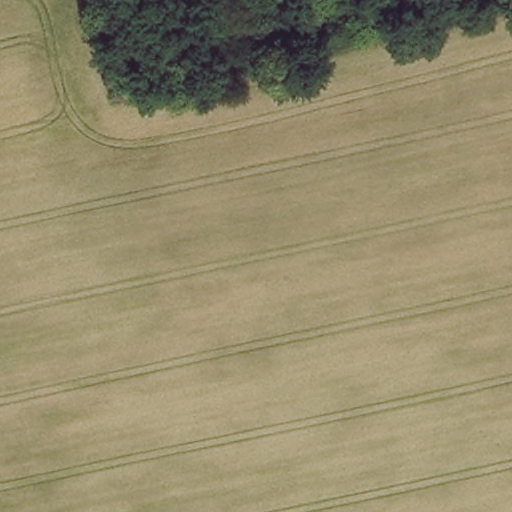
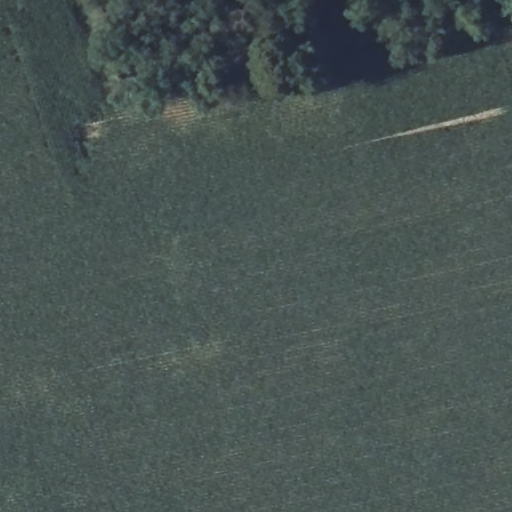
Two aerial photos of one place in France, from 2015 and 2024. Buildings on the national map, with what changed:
[]

